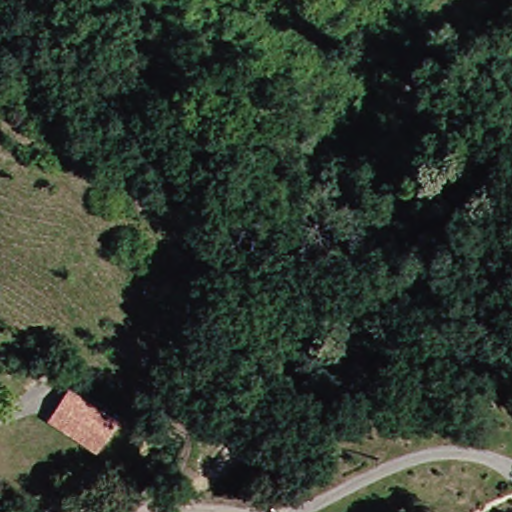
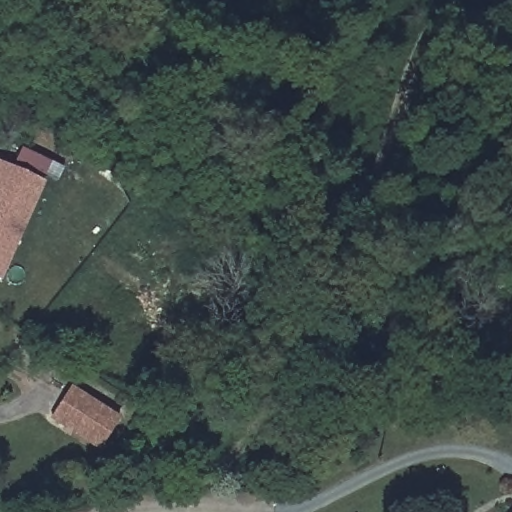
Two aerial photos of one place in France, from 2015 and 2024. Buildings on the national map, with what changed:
new [(0,159),(48,181),(43,191),(27,182),(19,199),(0,190),(0,159)]
new [(19,199),(27,182),(43,191),(3,277),(0,276),(0,190),(19,199)]
unchanged [(117,420),(98,448),(52,418),(71,390),(117,420)]

